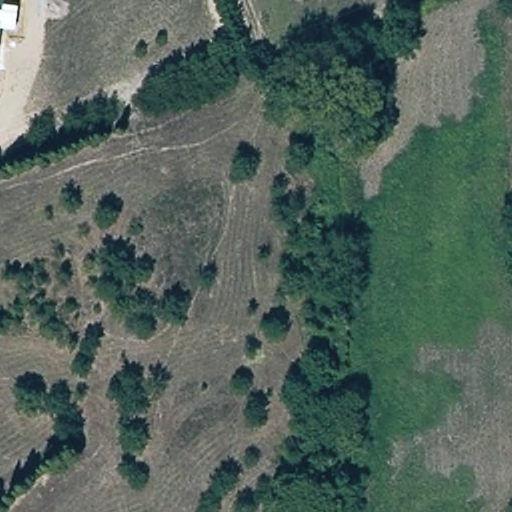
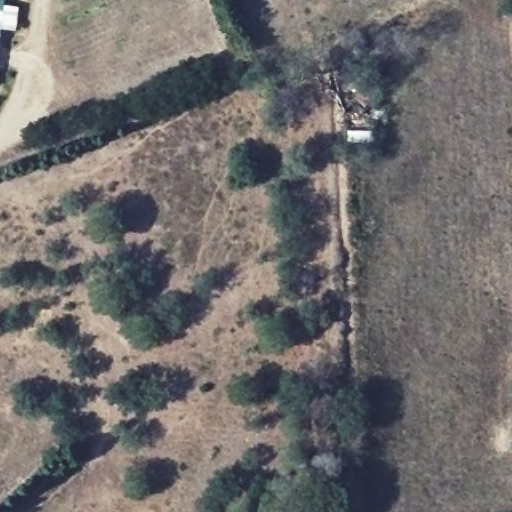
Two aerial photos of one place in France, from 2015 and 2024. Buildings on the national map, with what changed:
unchanged [(0,73),(0,0),(9,0),(0,73)]

